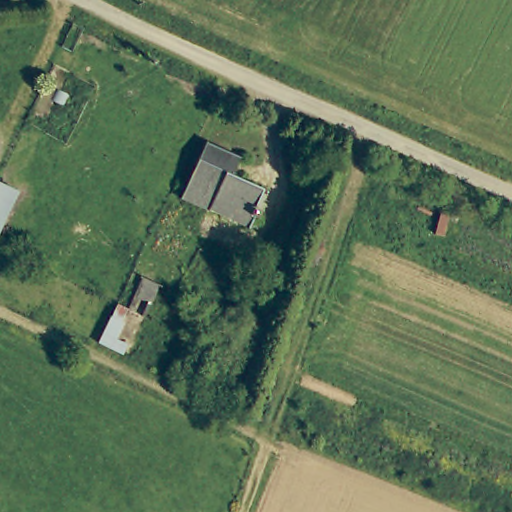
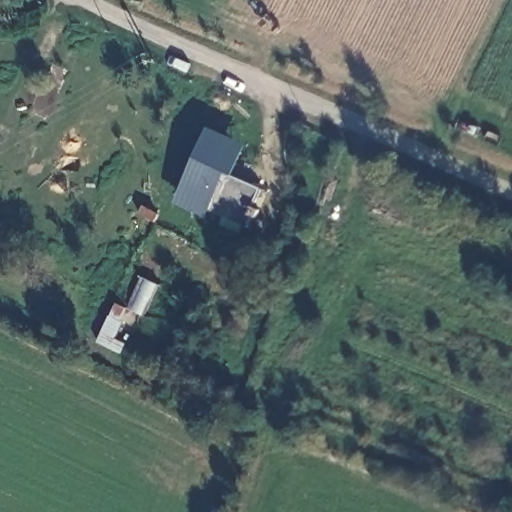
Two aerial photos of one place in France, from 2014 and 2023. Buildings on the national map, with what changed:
unchanged [(242,155),(235,172),(265,186),(257,204),(263,206),(258,217),(252,214),(246,229),(183,197),(209,139),(242,155)]
demolished [(0,229),(0,178),(19,186),(0,229)]

